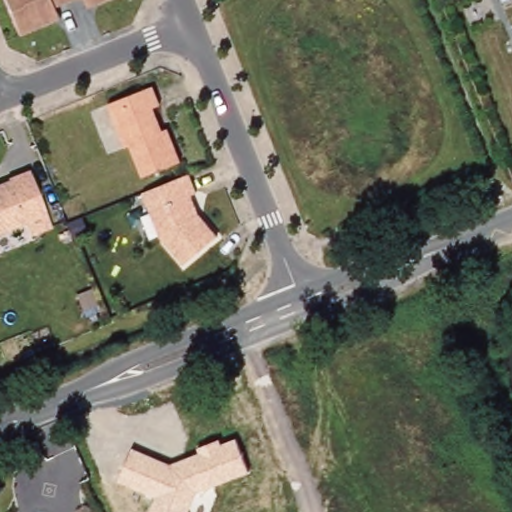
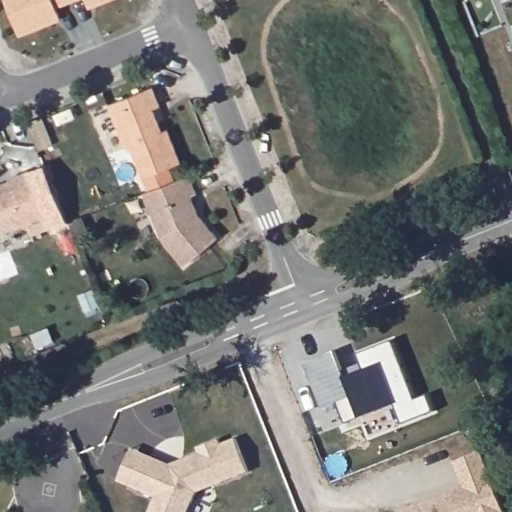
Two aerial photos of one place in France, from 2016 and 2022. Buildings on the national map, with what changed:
unchanged [(18,39),(2,0),(67,0),(69,5),(55,10),(59,22),(53,25),(18,39)]
unchanged [(67,0),(81,0),(69,5),(67,0)]
unchanged [(88,11),(83,0),(115,0),(94,9),(88,11)]
unchanged [(150,86),(158,105),(151,107),(160,131),(165,129),(179,162),(140,177),(128,146),(123,147),(106,104),(150,86)]
unchanged [(167,182),(188,174),(195,192),(190,195),(197,213),(216,235),(183,265),(159,236),(142,192),(167,182)]
unchanged [(26,221),(0,232),(0,184),(10,180),(26,221)]
new [(396,403),(360,416),(345,422),(339,401),(322,408),(305,363),(336,351),(344,375),(364,368),(358,354),(393,340),(415,401),(428,396),(433,410),(403,422),(396,403)]
unchanged [(156,497),(120,482),(132,450),(133,450),(172,465),(200,453),(199,447),(220,440),(223,445),(238,439),(249,471),(198,493),(190,512),(150,512),(156,497)]
new [(462,487),(453,462),(483,451),(506,512),(397,512),(398,510),(462,487)]

